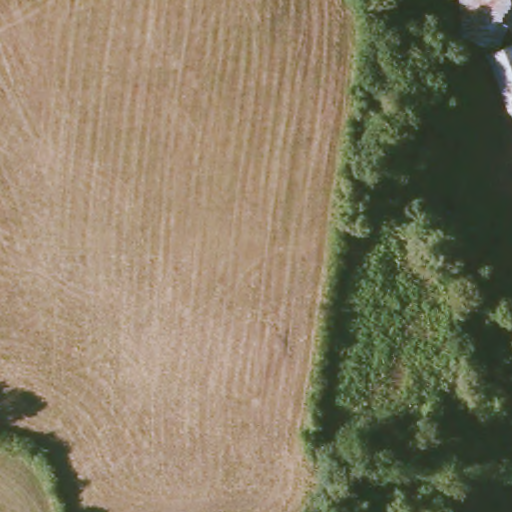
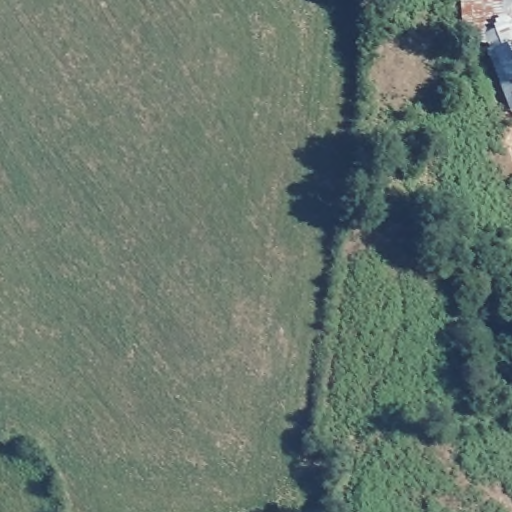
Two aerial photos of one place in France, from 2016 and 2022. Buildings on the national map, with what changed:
unchanged [(462,37),(460,0),(508,0),(504,8),(512,11),(504,29),(507,30),(498,52),(462,37)]
unchanged [(508,0),(512,0),(512,11),(504,8),(508,0)]
unchanged [(504,29),(512,11),(512,32),(507,30),(504,29)]

